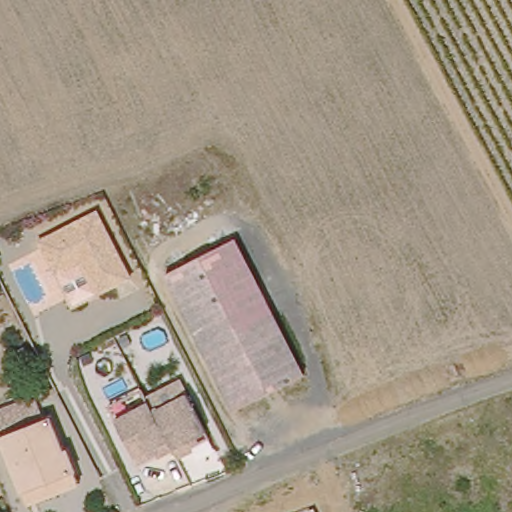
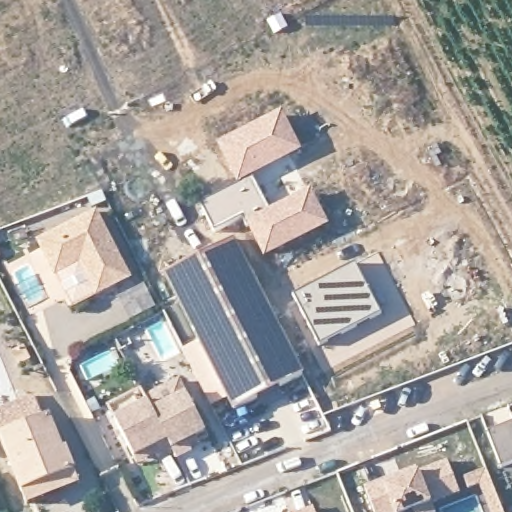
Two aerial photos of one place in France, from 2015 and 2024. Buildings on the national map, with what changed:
new [(282,111),(302,151),(251,177),(237,185),(217,146),(282,111)]
new [(237,185),(251,177),(268,209),(243,221),(242,219),(215,232),(200,203),(237,185)]
new [(268,209),(312,190),(330,225),(263,258),(243,221),(268,209)]
unchanged [(35,242),(97,212),(130,279),(96,296),(78,266),(52,277),(35,242)]
unchanged [(235,237),(306,371),(237,408),(166,275),(235,237)]
new [(355,262),(381,315),(320,346),(293,294),(355,262)]
unchanged [(112,419),(146,401),(151,408),(180,396),(203,432),(195,437),(198,448),(174,460),(168,447),(133,463),(112,419)]
unchanged [(24,502),(20,490),(0,441),(0,439),(45,420),(57,450),(63,447),(71,469),(76,480),(24,502)]
new [(488,430),(512,422),(512,464),(500,469),(488,430)]
new [(432,504),(436,512),(372,512),(363,487),(416,467),(419,473),(448,462),(460,494),(432,504)]
unchanged [(315,512),(300,512),(313,507),(315,512)]

